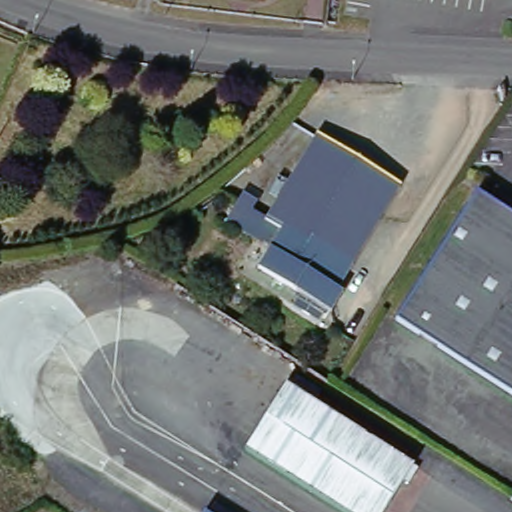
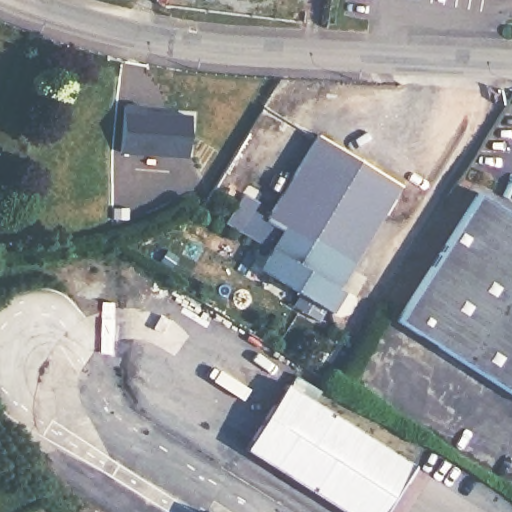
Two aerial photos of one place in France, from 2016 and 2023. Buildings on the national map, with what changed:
new [(124,106),(144,107),(144,112),(192,116),(188,158),(121,152),(124,106)]
unchanged [(323,134),(405,186),(342,289),(348,293),(334,314),(262,268),(280,237),(265,228),(323,134)]
unchanged [(399,322),(482,195),(512,215),(512,398),(399,322)]
unchanged [(420,471),(410,488),(404,485),(388,512),(339,512),(247,451),(288,385),(420,471)]

